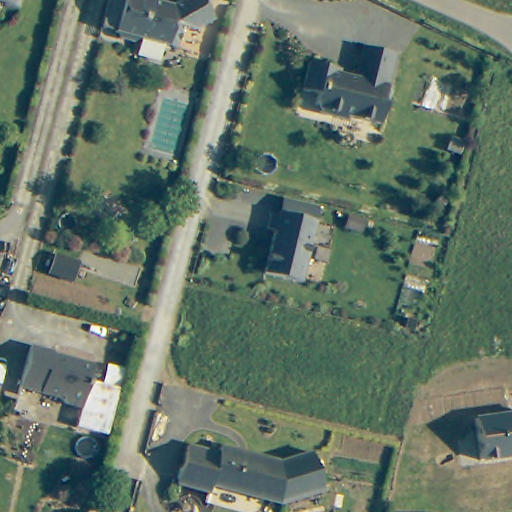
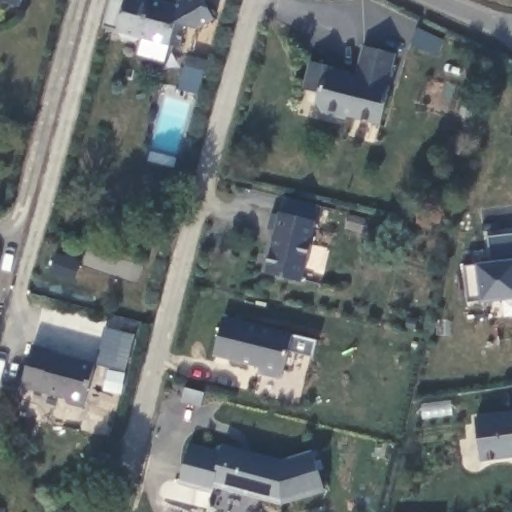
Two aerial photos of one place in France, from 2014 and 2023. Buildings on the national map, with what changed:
unchanged [(0,3),(0,0),(22,0),(19,9),(0,3)]
unchanged [(203,0),(212,17),(196,29),(186,27),(180,45),(144,35),(136,40),(122,36),(125,29),(121,27),(128,0),(155,0),(165,2),(175,5),(183,0),(203,0)]
unchanged [(340,70),(339,75),(357,79),(363,50),(394,58),(386,86),(391,87),(382,123),(349,116),(348,121),(327,115),(316,104),(317,94),(304,90),(311,64),(340,70)]
unchanged [(257,270),(268,226),(260,225),(264,210),(271,211),(272,209),(276,194),(319,205),(315,220),(300,280),(257,270)]
unchanged [(361,231),(345,226),(347,213),(365,217),(361,231)]
new [(467,304),(462,267),(477,265),(490,263),(486,237),(512,236),(512,298),(482,303),(467,304)]
unchanged [(78,276),(55,270),(59,252),(82,258),(78,276)]
new [(258,375),(260,368),(212,355),(223,316),(295,333),(284,375),(280,374),(280,380),(258,375)]
unchanged [(31,345),(54,352),(52,355),(94,366),(82,408),(64,402),(65,398),(20,385),(31,345)]
unchanged [(117,388),(104,385),(109,366),(122,370),(117,388)]
unchanged [(477,418),(512,415),(512,459),(485,463),(477,418)]
unchanged [(195,449),(222,456),(224,450),(282,465),(310,452),(325,489),(285,505),(216,487),(214,495),(184,486),(195,449)]

